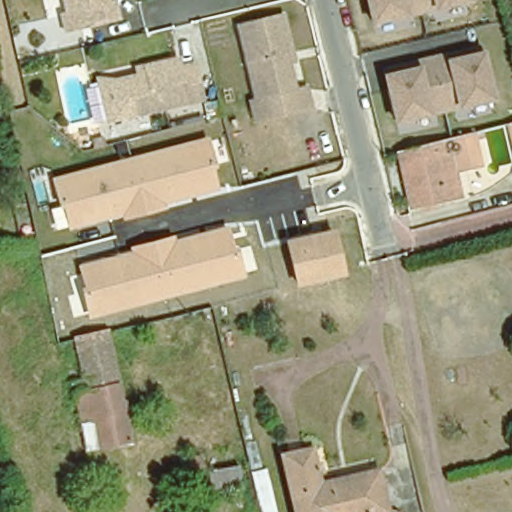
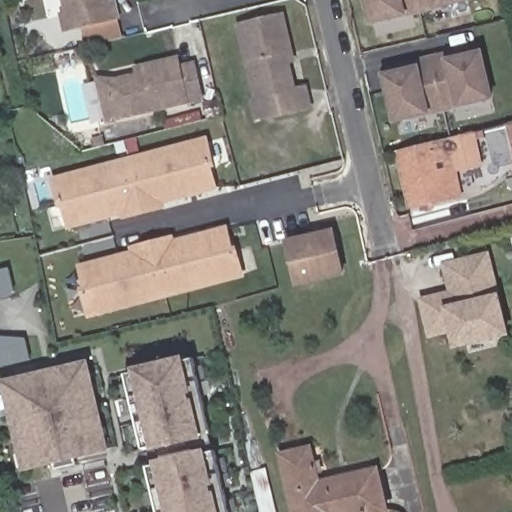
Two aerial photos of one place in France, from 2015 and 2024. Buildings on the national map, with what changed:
unchanged [(65,15),(62,0),(107,0),(107,4),(113,2),(116,19),(87,26),(63,31),(59,16),(65,15)]
unchanged [(372,23),(368,0),(468,0),(468,1),(372,23)]
unchanged [(237,31),(279,20),(289,56),(291,64),(285,64),(291,94),(302,91),(307,113),(272,120),(251,126),(246,108),(254,105),(237,31)]
unchanged [(416,65),(417,70),(447,64),(445,59),(479,51),(490,102),(394,123),(383,72),(416,65)]
unchanged [(99,83),(147,72),(181,65),(182,71),(197,68),(205,104),(115,125),(109,126),(99,83)]
unchanged [(512,142),(507,122),(512,121),(512,142)]
unchanged [(224,193),(69,232),(54,176),(210,135),(224,193)]
unchanged [(453,153),(451,141),(472,135),(481,166),(458,173),(463,197),(413,208),(401,153),(432,145),(435,156),(453,153)]
unchanged [(244,279),(88,318),(75,266),(230,223),(244,279)]
unchanged [(349,276),(300,288),(286,241),(338,227),(349,276)]
new [(419,299),(449,292),(442,263),(489,251),(500,293),(510,336),(454,349),(450,332),(428,338),(419,299)]
new [(0,302),(0,269),(10,267),(16,293),(0,302)]
demolished [(82,381),(71,330),(106,321),(106,322),(128,432),(84,441),(71,384),(82,381)]
new [(32,360),(0,367),(0,335),(26,337),(32,360)]
new [(205,439),(152,449),(152,446),(145,447),(128,375),(135,374),(134,369),(185,357),(185,361),(194,359),(212,431),(204,434),(205,439)]
new [(79,459),(80,465),(59,470),(57,464),(24,472),(3,380),(90,358),(112,451),(79,459)]
new [(149,467),(156,466),(155,461),(207,449),(208,453),(218,451),(232,512),(160,512),(149,467)]
unchanged [(375,475),(385,512),(295,512),(282,459),(309,453),(313,465),(319,463),(321,473),(315,474),(319,485),(375,475)]
demolished [(184,467),(204,464),(207,479),(187,482),(184,467)]

